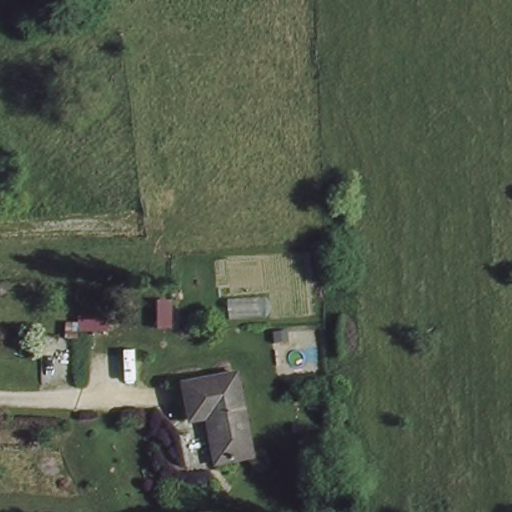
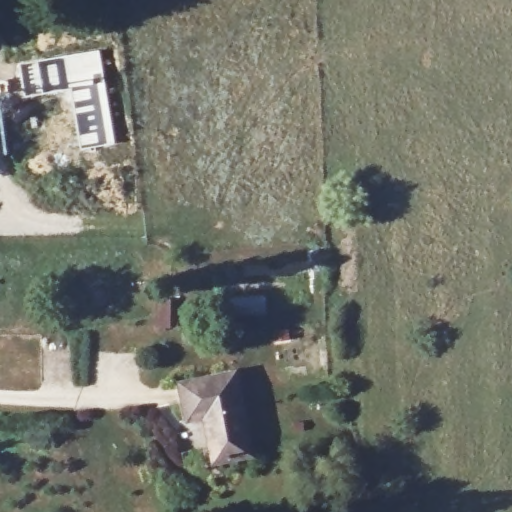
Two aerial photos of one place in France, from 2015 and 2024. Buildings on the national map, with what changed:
new [(100,49),(115,145),(80,150),(69,92),(23,99),(17,62),(100,49)]
unchanged [(2,150),(5,175),(0,175),(0,150),(2,150)]
unchanged [(246,459),(209,461),(206,416),(189,416),(187,382),(244,378),(246,459)]

